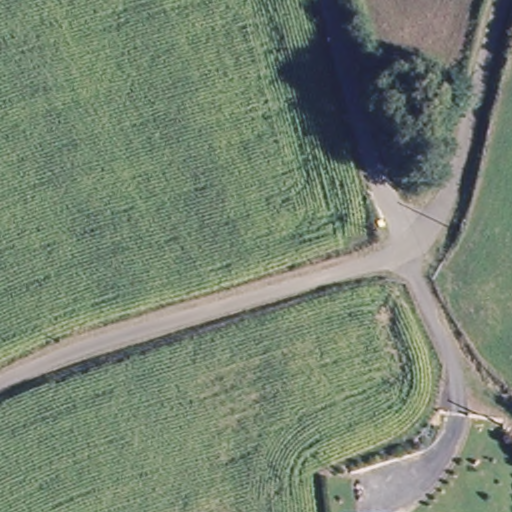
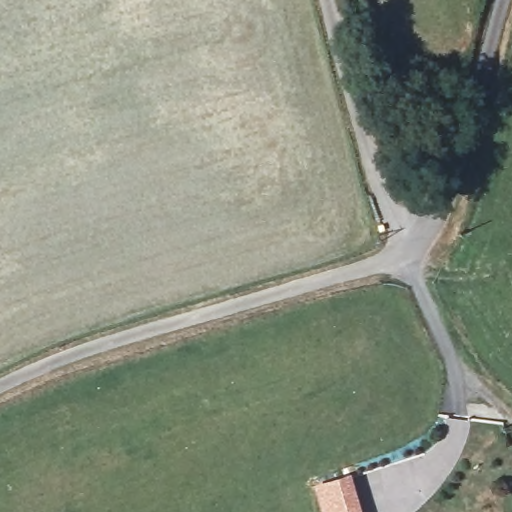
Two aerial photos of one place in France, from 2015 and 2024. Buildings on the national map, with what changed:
new [(351,475),(362,512),(322,512),(314,486),(351,475)]

